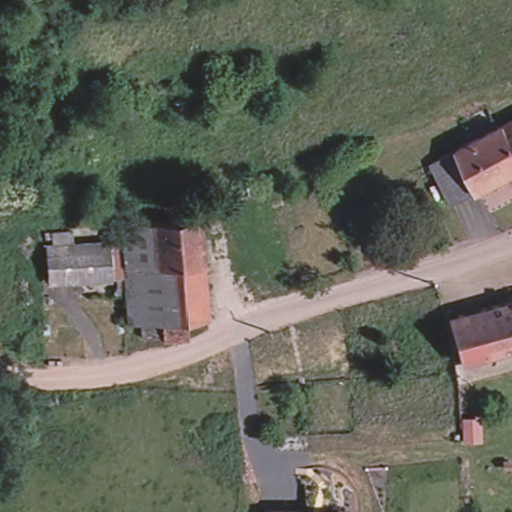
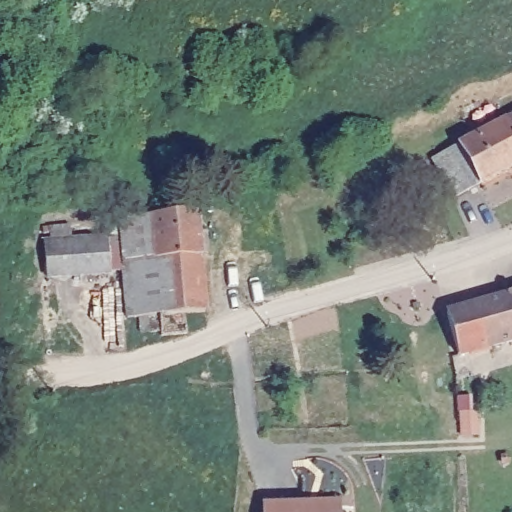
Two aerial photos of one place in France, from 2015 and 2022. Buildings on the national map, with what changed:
unchanged [(512,129),(507,119),(512,117),(512,129)]
unchanged [(512,129),(512,168),(479,185),(457,146),(507,119),(512,129)]
unchanged [(454,198),(433,158),(457,146),(479,185),(454,198)]
unchanged [(73,197),(36,199),(0,201),(0,178),(35,176),(72,174),(73,197)]
unchanged [(151,215),(197,210),(201,257),(155,262),(151,217),(151,215)]
unchanged [(161,336),(161,331),(141,333),(140,318),(127,318),(120,220),(151,217),(155,262),(201,257),(206,313),(186,314),(188,334),(161,336)]
unchanged [(90,225),(90,230),(70,231),(70,237),(50,238),(50,233),(43,234),(43,228),(90,225)]
unchanged [(105,226),(118,225),(121,273),(109,273),(48,277),(45,243),(106,239),(105,226)]
unchanged [(68,282),(68,293),(56,294),(56,282),(68,282)]
unchanged [(512,294),(512,333),(503,296),(512,294)]
unchanged [(512,333),(512,342),(458,356),(447,312),(503,296),(512,333)]
unchanged [(339,501),(339,512),(261,512),(261,502),(339,501)]

